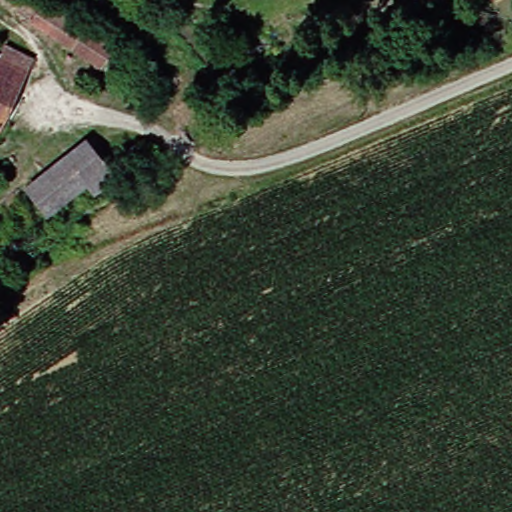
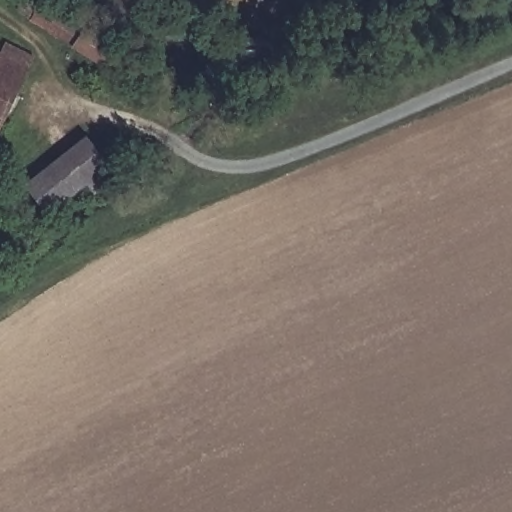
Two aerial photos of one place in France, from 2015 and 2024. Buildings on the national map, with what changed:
unchanged [(14,11),(20,0),(27,0),(95,43),(83,59),(14,11)]
unchanged [(23,75),(3,61),(0,68),(0,47),(30,63),(23,75)]
unchanged [(0,118),(0,68),(3,61),(23,75),(0,118)]
unchanged [(53,221),(26,182),(36,175),(88,139),(114,179),(84,199),(53,221)]

